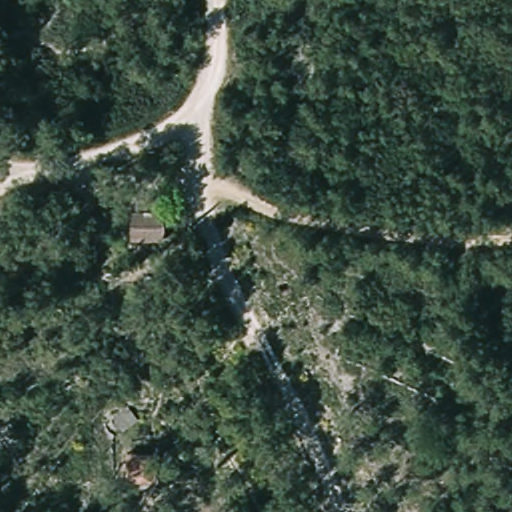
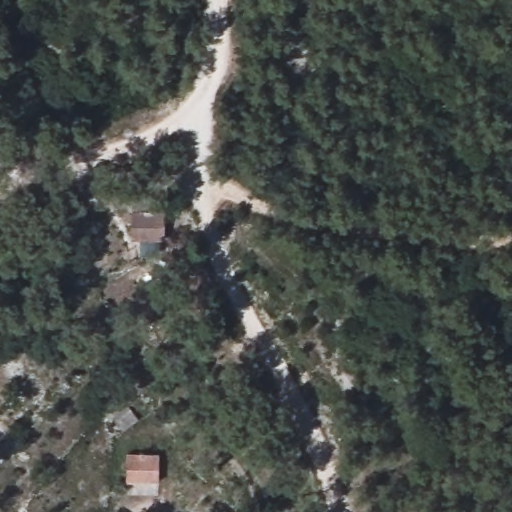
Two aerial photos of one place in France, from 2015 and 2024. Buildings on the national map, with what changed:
unchanged [(167,212),(169,242),(132,244),(132,212),(167,212)]
new [(159,455),(158,483),(126,483),(127,456),(159,455)]

